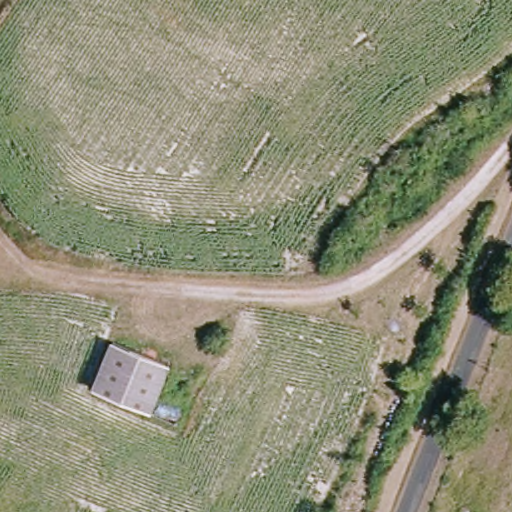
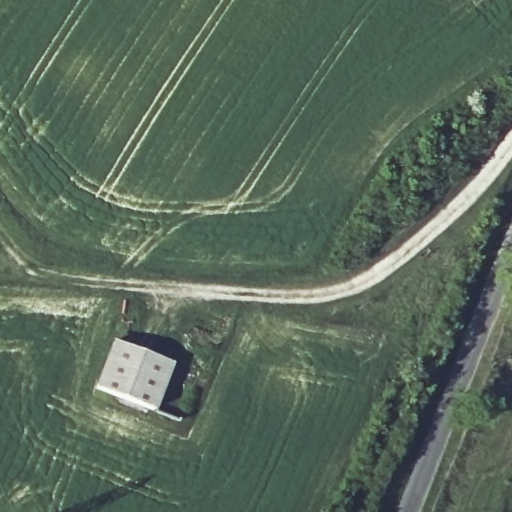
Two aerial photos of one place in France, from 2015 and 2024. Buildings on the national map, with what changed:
unchanged [(169,422),(101,393),(122,343),(190,372),(169,422)]

